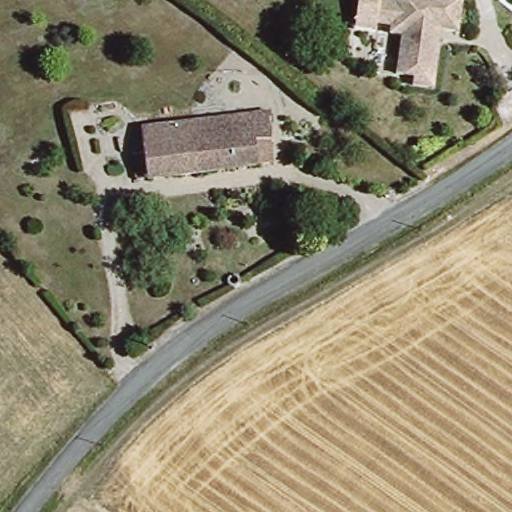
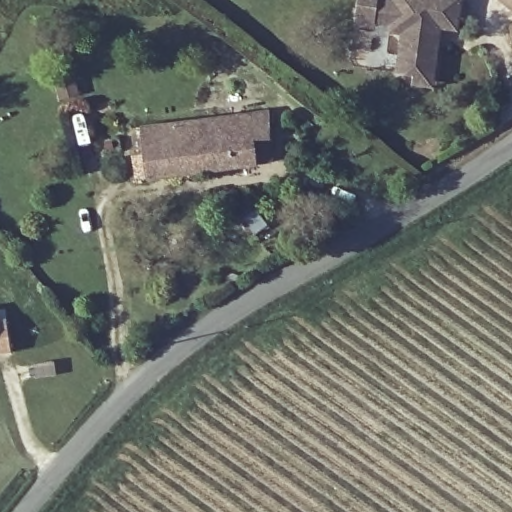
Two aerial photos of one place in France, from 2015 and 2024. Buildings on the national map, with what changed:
unchanged [(391,74),(398,35),(384,33),(386,24),(371,21),(370,27),(350,24),(354,0),(374,0),(389,3),(389,0),(459,0),(453,34),(438,30),(428,89),(407,85),(409,76),(391,74)]
new [(499,0),(512,0),(512,11),(499,0)]
unchanged [(274,134),(259,136),(261,160),(152,172),(146,120),(272,106),(274,134)]
new [(14,354),(0,357),(0,320),(9,319),(14,354)]

